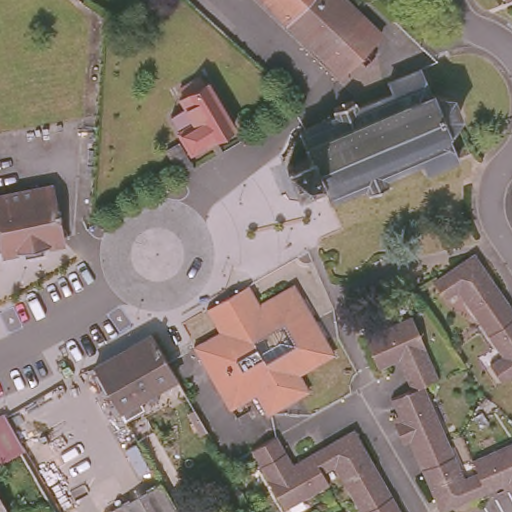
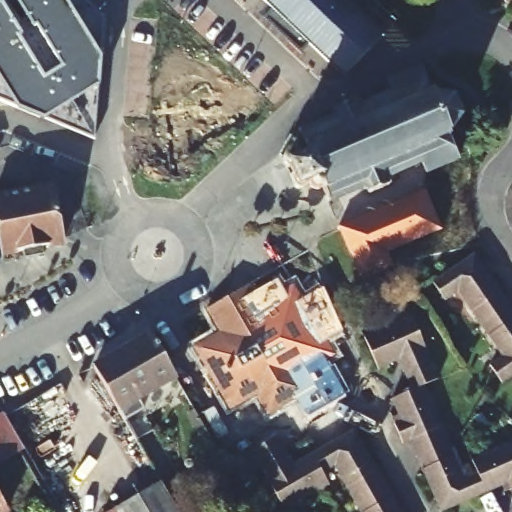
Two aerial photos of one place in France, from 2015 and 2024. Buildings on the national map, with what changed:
new [(97,84),(56,109),(41,115),(18,108),(0,75),(0,1),(2,0),(68,0),(100,53),(97,84)]
unchanged [(364,46),(371,53),(361,62),(355,57),(341,71),(265,0),(344,0),(378,32),(364,46)]
unchanged [(324,191),(319,192),(314,190),(310,186),(298,191),(287,165),(309,156),(300,133),(338,118),(335,109),(354,101),(358,109),(394,94),(389,84),(422,69),(434,98),(453,99),(461,118),(449,134),(461,161),(428,175),(423,165),(388,179),(391,188),(371,196),(368,189),(329,204),(324,191)]
unchanged [(193,103),(188,94),(194,89),(190,81),(208,71),(212,79),(216,76),(243,119),(201,146),(188,126),(189,125),(180,110),(193,103)]
demolished [(191,169),(176,145),(189,137),(204,161),(191,169)]
unchanged [(30,255),(28,248),(7,253),(0,219),(0,196),(54,184),(66,239),(44,244),(46,252),(30,255)]
new [(424,192),(439,231),(384,252),(388,262),(359,275),(338,227),(424,192)]
unchanged [(489,367),(503,358),(455,288),(441,298),(432,285),(477,254),(481,260),(512,307),(512,372),(499,381),(489,367)]
unchanged [(219,332),(206,309),(246,285),(260,309),(294,288),(333,356),(318,364),(316,361),(296,371),(309,392),(268,416),(255,394),(228,409),(193,347),(219,332)]
unchanged [(405,439),(398,441),(389,417),(394,414),(391,407),(387,397),(406,389),(393,359),(386,362),(374,366),(361,334),(413,314),(427,347),(424,347),(436,375),(420,382),(458,473),(475,467),(469,453),(512,436),(512,481),(501,486),(499,479),(434,507),(430,496),(419,472),(405,439)]
unchanged [(176,376),(136,398),(142,408),(123,419),(94,366),(151,333),(176,376)]
unchanged [(5,413),(26,449),(20,452),(5,460),(0,463),(0,415),(5,413)]
unchanged [(357,438),(360,443),(374,466),(394,504),(399,512),(358,512),(334,466),(318,474),(324,488),(283,512),(266,483),(269,482),(254,455),(279,441),(294,467),(355,434),(357,438)]
unchanged [(177,512),(109,512),(161,483),(177,512)]
unchanged [(7,512),(0,512),(0,499),(7,512)]

